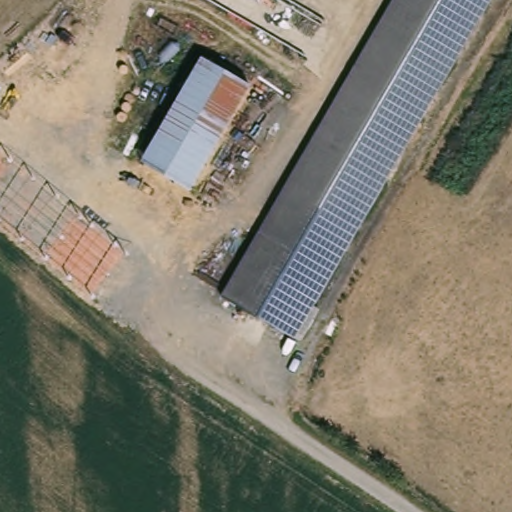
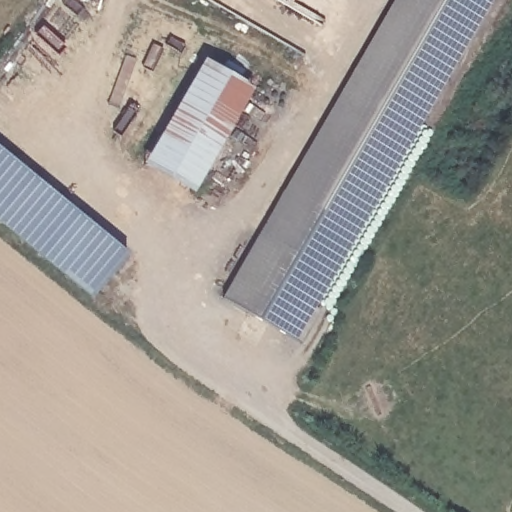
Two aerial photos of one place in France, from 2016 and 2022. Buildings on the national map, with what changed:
unchanged [(400,0),(495,0),(292,341),(222,300),(400,0)]
unchanged [(210,59),(257,87),(196,190),(149,162),(210,59)]
new [(0,149),(128,254),(90,299),(0,225),(0,149)]

